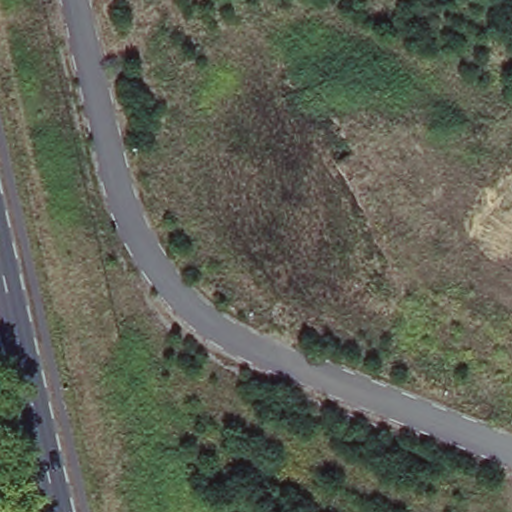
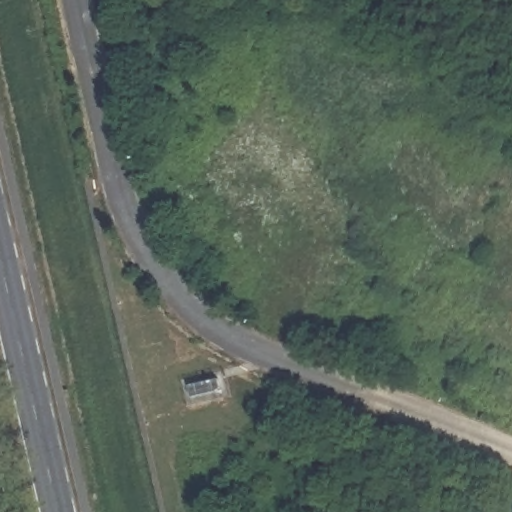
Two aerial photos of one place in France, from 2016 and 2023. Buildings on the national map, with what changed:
[]

